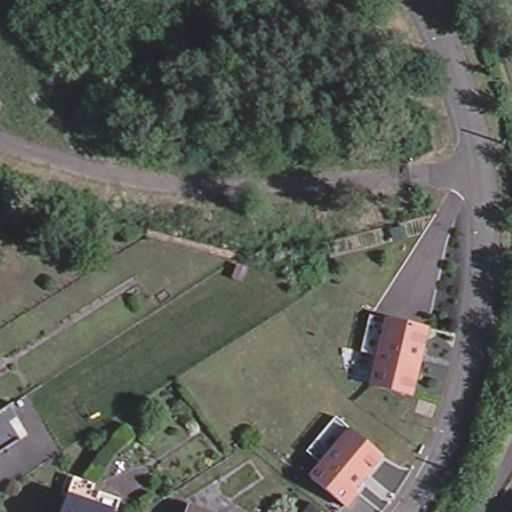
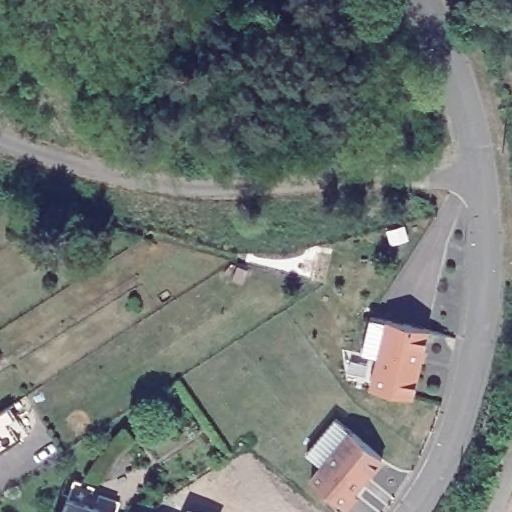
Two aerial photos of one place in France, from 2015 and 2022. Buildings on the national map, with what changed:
unchanged [(404,227),(407,239),(395,241),(394,237),(390,238),(388,232),(404,227)]
unchanged [(373,387),(380,357),(363,353),(372,317),(429,330),(423,355),(420,355),(414,377),(418,378),(413,397),(373,387)]
unchanged [(355,430),(387,456),(385,458),(370,476),(367,473),(355,488),(362,495),(351,508),(333,493),(316,478),(327,465),(312,452),(340,417),(355,430)]
unchanged [(7,466),(0,456),(0,452),(25,436),(33,450),(7,466)]
unchanged [(70,494),(116,510),(115,512),(63,512),(70,494)]
unchanged [(321,512),(304,512),(311,504),(321,512)]
unchanged [(200,512),(188,512),(190,508),(200,512)]

